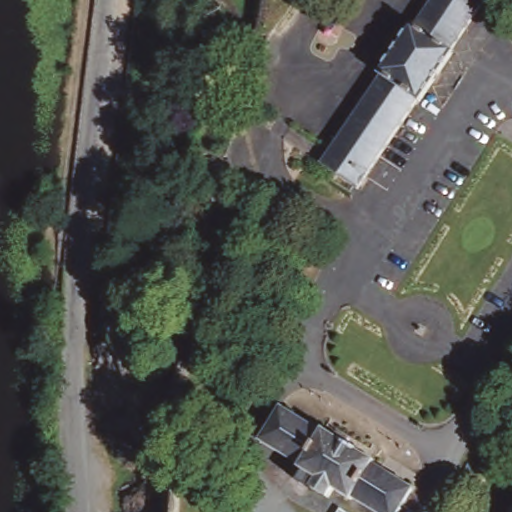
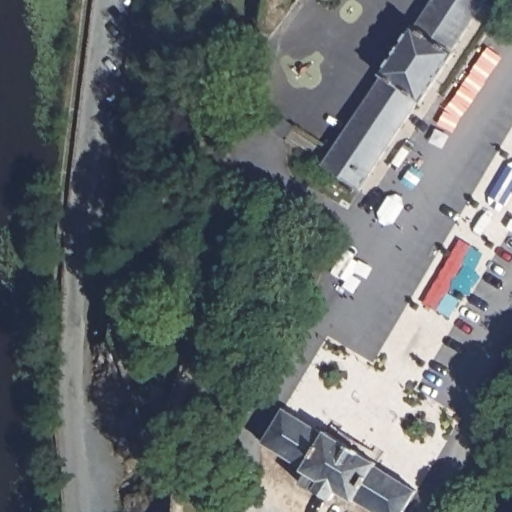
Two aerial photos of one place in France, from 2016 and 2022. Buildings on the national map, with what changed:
unchanged [(433,0),(486,0),(451,51),(453,54),(421,104),(418,102),(358,192),(321,167),(381,78),(378,76),(412,26),(414,27),(433,0)]
unchanged [(262,444),(283,409),(324,435),(327,431),(377,464),(375,467),(416,493),(404,512),(372,512),(353,501),(351,503),(334,492),(328,501),(313,491),(307,496),(306,495),(305,491),(307,484),(310,485),(313,478),(301,471),(301,470),(302,468),(262,444)]

